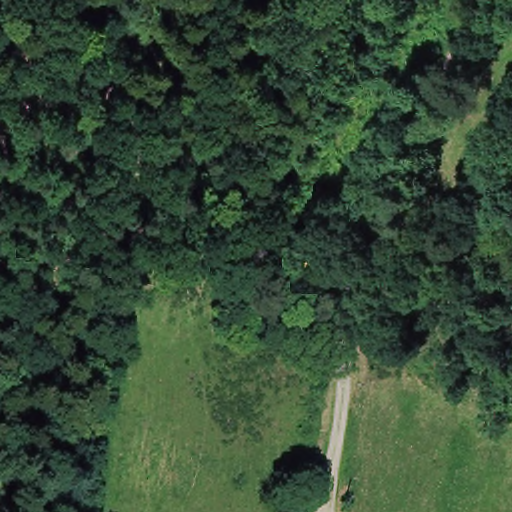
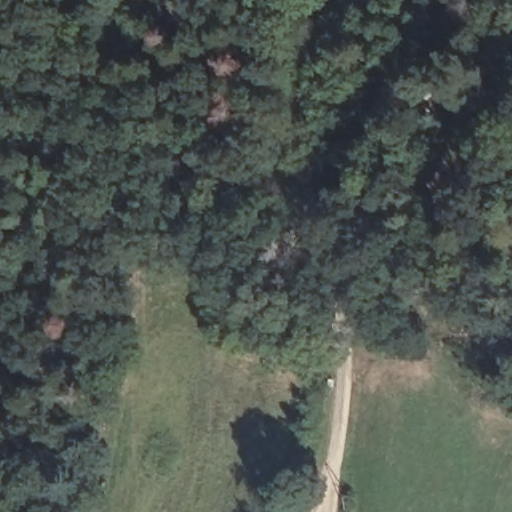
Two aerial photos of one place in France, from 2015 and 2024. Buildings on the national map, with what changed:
[]

